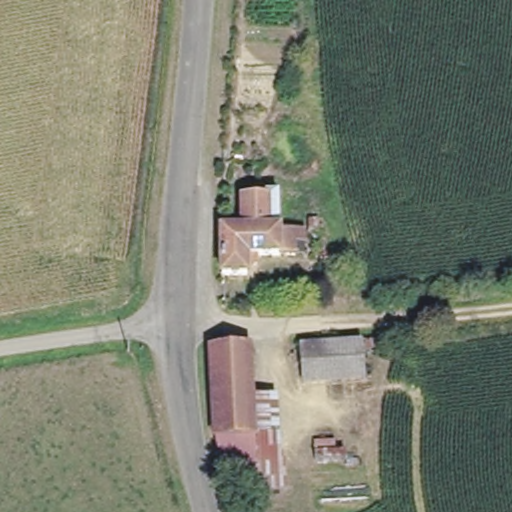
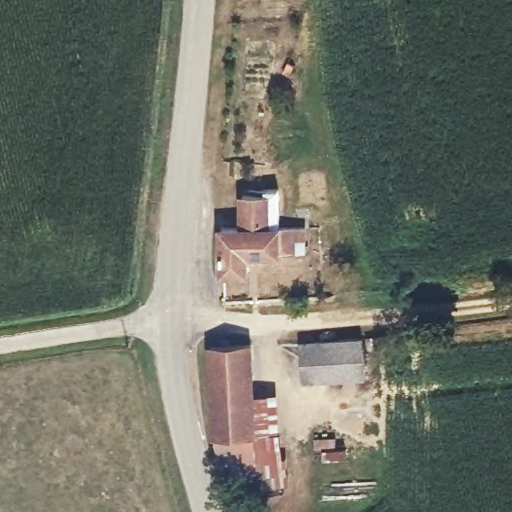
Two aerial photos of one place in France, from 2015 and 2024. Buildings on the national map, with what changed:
unchanged [(223,229),(244,228),(241,197),(279,195),(279,226),(300,226),(300,249),(253,252),(251,273),(225,272),(223,229)]
unchanged [(259,435),(219,433),(214,342),(254,337),(259,435)]
unchanged [(361,342),(363,363),(311,367),(310,344),(361,342)]
unchanged [(221,486),(219,433),(259,435),(260,486),(230,489),(221,486)]

